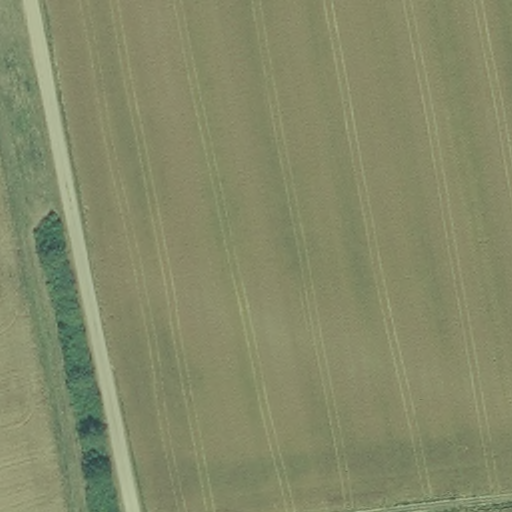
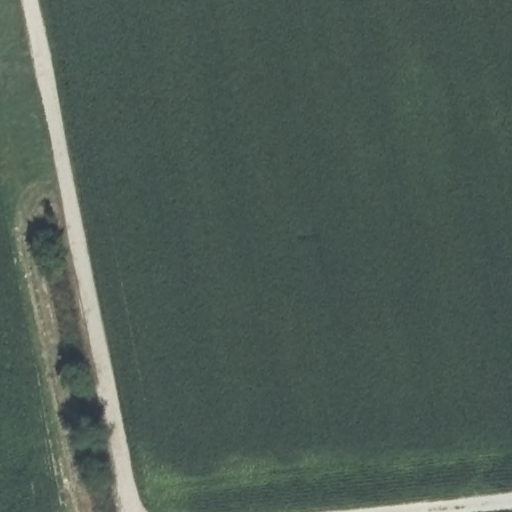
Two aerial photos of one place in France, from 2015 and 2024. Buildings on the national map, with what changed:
[]

